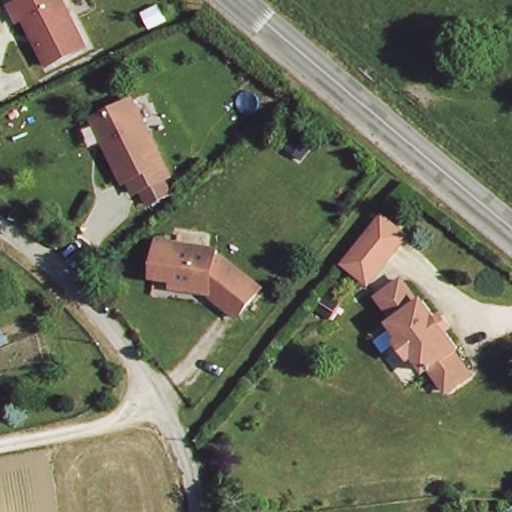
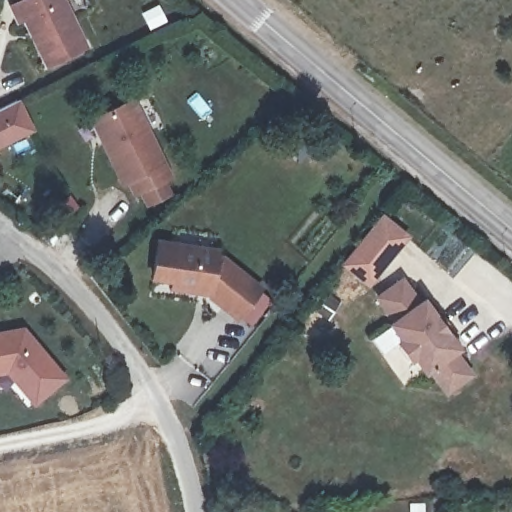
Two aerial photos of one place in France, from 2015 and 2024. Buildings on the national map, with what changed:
unchanged [(41,65),(20,25),(15,25),(4,2),(8,0),(67,0),(88,44),(41,65)]
demolished [(48,87),(64,121),(22,142),(6,110),(48,87)]
new [(17,99),(35,130),(0,147),(0,108),(17,99)]
unchanged [(96,128),(138,112),(167,194),(131,207),(126,192),(121,195),(96,128)]
unchanged [(385,216),(406,237),(365,282),(343,261),(385,216)]
unchanged [(158,240),(217,250),(221,260),(227,257),(265,289),(242,315),(210,288),(211,286),(152,277),(158,240)]
unchanged [(379,299),(402,281),(420,306),(424,303),(457,350),(452,355),(469,376),(446,394),(428,370),(425,372),(413,357),(409,360),(397,344),(403,340),(391,325),(396,321),(379,299)]
new [(22,326),(66,377),(34,405),(6,372),(0,373),(0,330),(22,326)]

